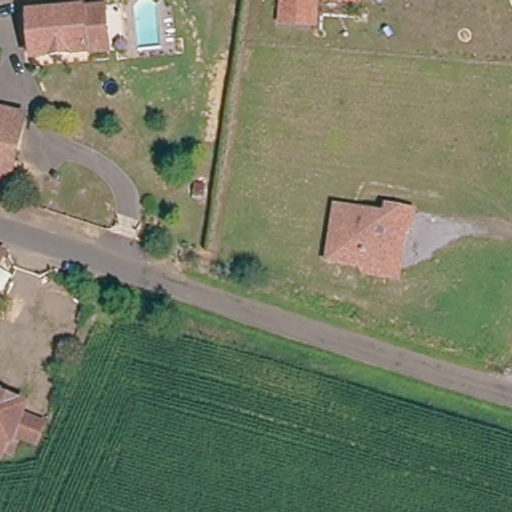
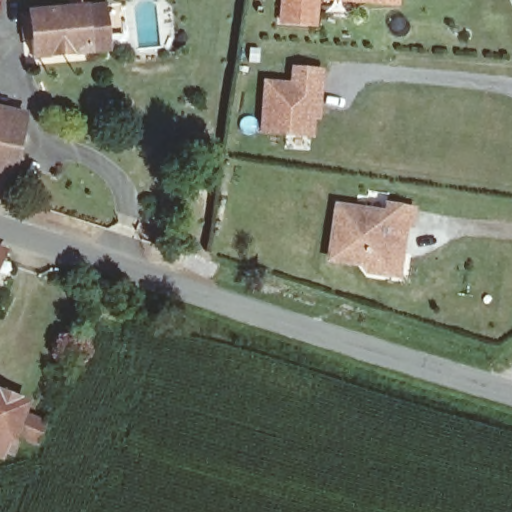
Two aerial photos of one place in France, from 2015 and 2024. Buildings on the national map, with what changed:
unchanged [(282,20),(283,0),(316,0),(315,22),(282,20)]
new [(316,0),(399,0),(399,6),(316,0)]
unchanged [(91,54),(71,54),(16,52),(16,6),(71,9),(91,10),(91,54)]
new [(260,132),(263,80),(291,81),(291,66),(324,69),(320,120),(315,120),(313,137),(260,132)]
unchanged [(0,201),(0,113),(21,117),(3,202),(0,201)]
unchanged [(393,281),(372,277),(365,268),(334,263),(341,212),(370,217),(369,222),(389,225),(391,211),(416,216),(415,230),(409,229),(405,258),(402,283),(393,281)]
unchanged [(0,257),(0,251),(3,251),(0,257)]
unchanged [(13,440),(6,440),(0,458),(0,398),(44,417),(36,448),(13,440)]

